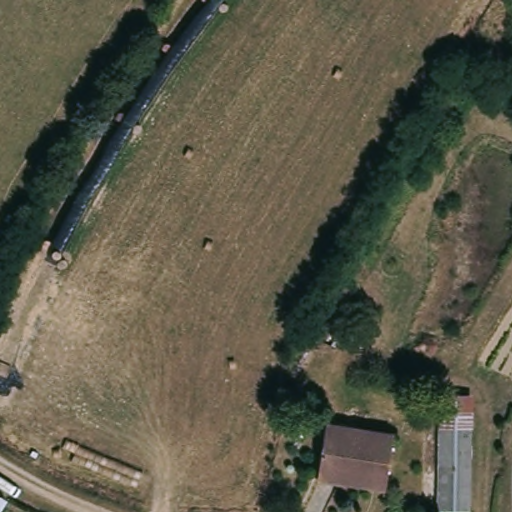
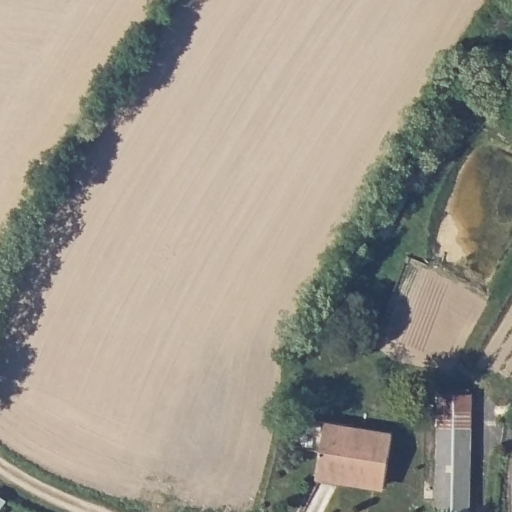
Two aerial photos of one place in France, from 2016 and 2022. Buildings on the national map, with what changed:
unchanged [(475,512),(437,512),(441,392),(475,395),(475,512)]
unchanged [(397,437),(387,485),(348,475),(346,480),(320,473),(330,422),(397,437)]

